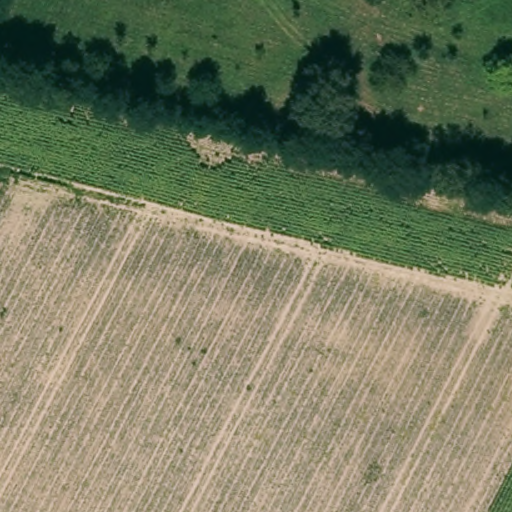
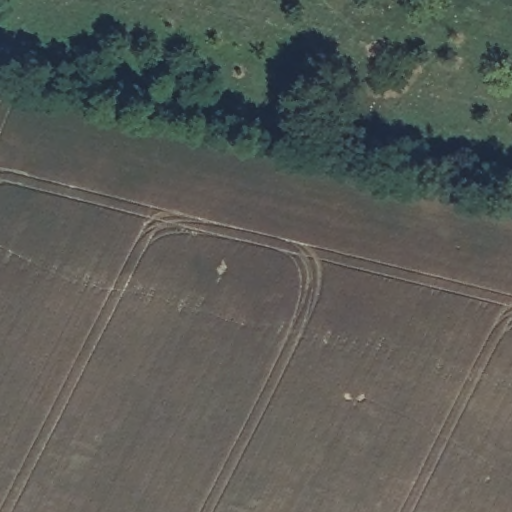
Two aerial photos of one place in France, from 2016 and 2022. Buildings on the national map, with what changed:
[]

